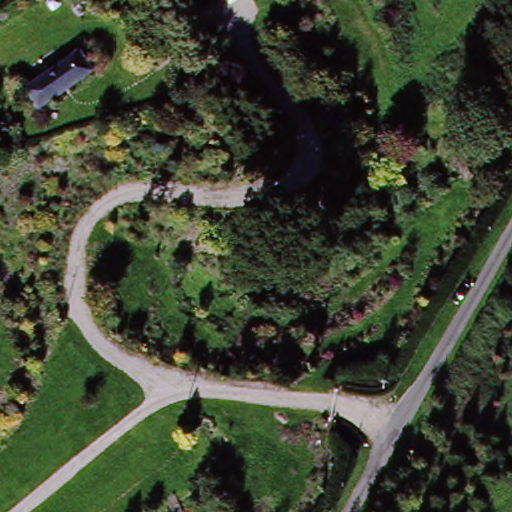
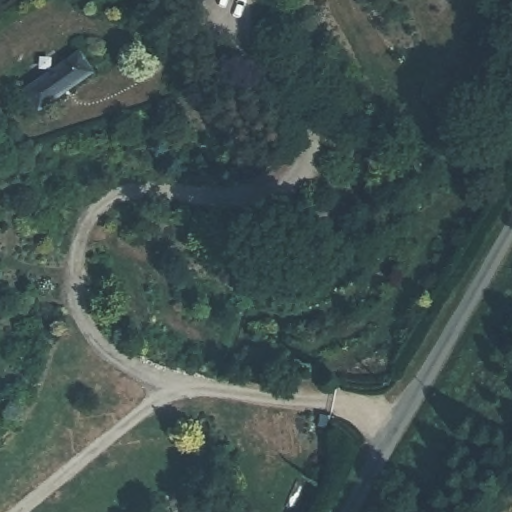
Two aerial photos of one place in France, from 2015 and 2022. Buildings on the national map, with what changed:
unchanged [(34,112),(21,94),(75,55),(88,74),(34,112)]

